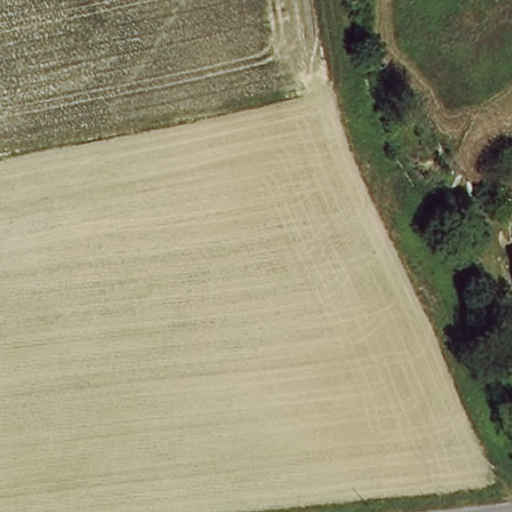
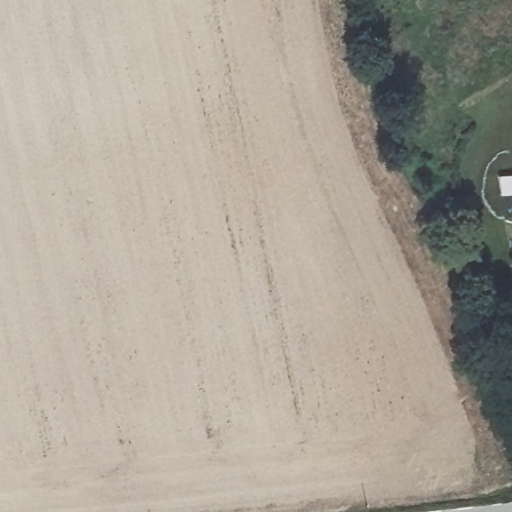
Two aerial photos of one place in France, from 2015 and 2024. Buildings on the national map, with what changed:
unchanged [(512,247),(512,262),(508,247),(512,247)]

